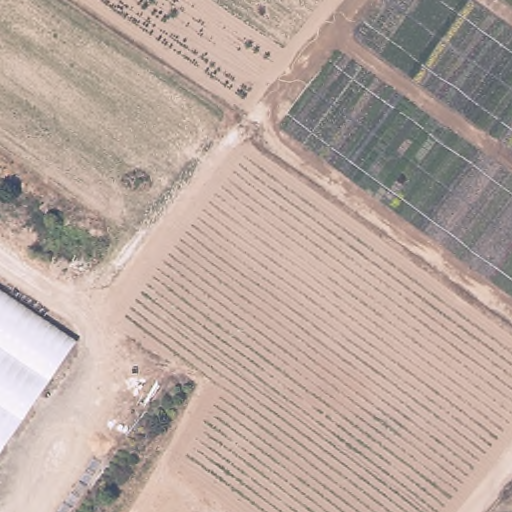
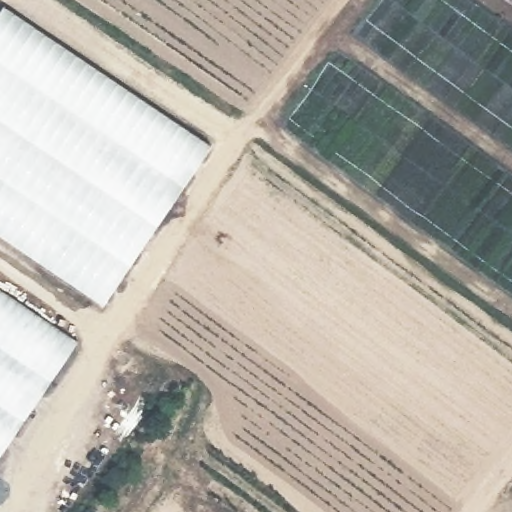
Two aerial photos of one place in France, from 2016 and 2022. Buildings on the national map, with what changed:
new [(213,145),(103,306),(0,237),(0,11),(4,5),(213,145)]
unchanged [(78,344),(0,457),(0,291),(78,344)]

